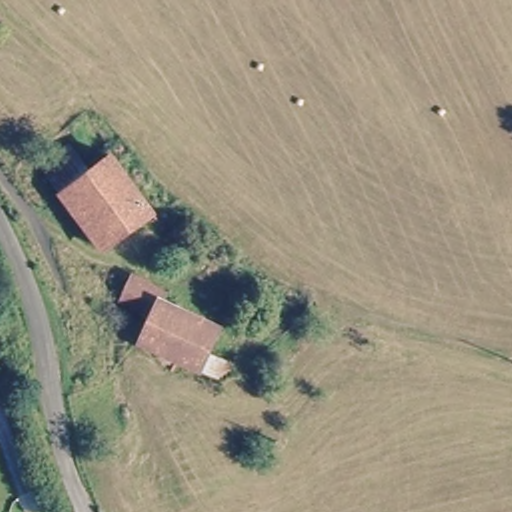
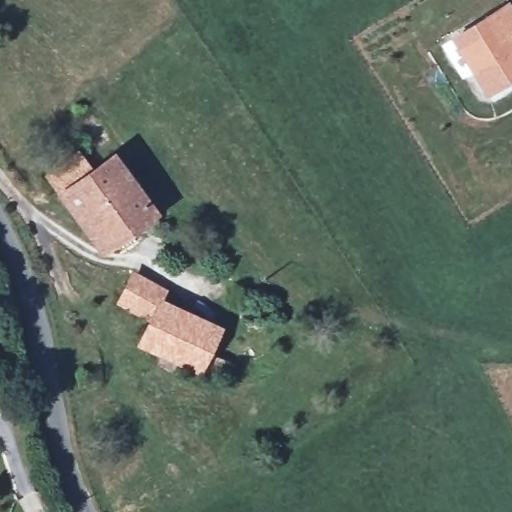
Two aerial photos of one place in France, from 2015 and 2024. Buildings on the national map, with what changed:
new [(512,35),(511,35),(512,36),(512,81),(487,97),(449,37),(509,0),(512,5),(512,35)]
unchanged [(102,257),(65,204),(62,199),(115,160),(156,221),(102,257)]
unchanged [(136,276),(167,291),(162,302),(155,319),(123,304),(136,276)]
unchanged [(221,331),(202,372),(144,342),(155,319),(162,302),(221,331)]

